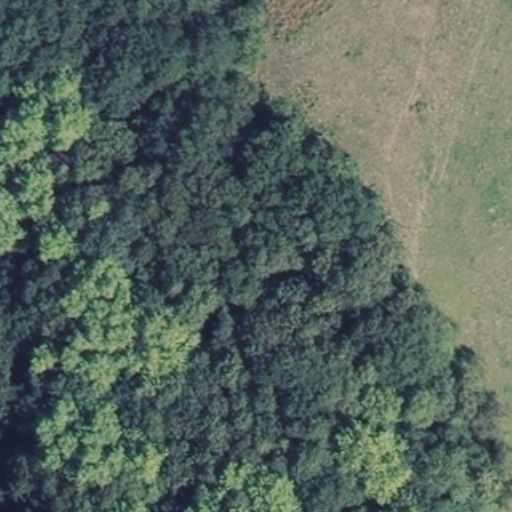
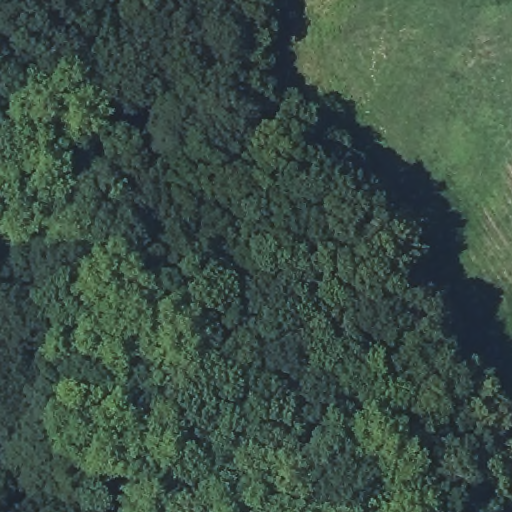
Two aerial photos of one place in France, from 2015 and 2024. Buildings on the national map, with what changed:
[]

